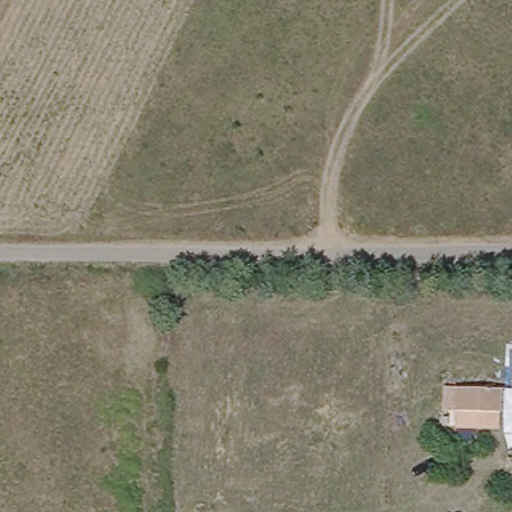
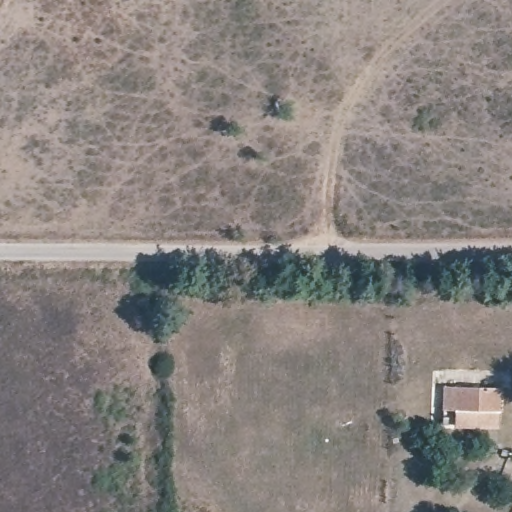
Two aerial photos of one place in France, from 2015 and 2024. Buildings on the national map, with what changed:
unchanged [(457,424),(457,406),(446,406),(446,383),(503,383),(502,424),(457,424)]

